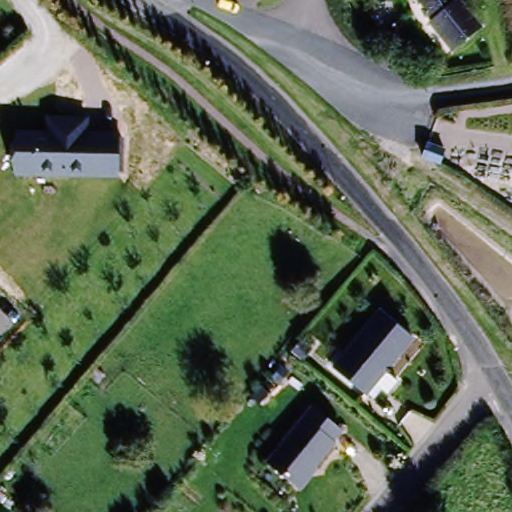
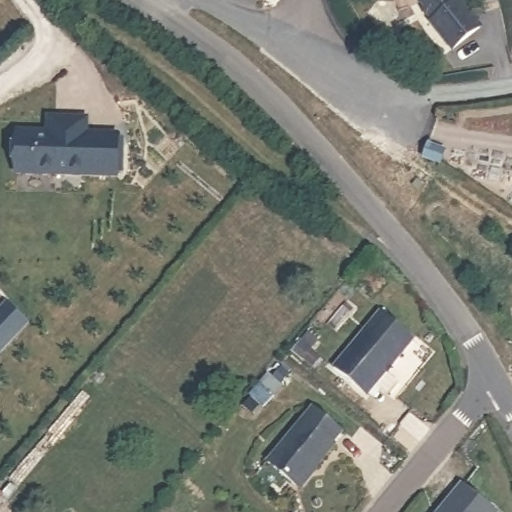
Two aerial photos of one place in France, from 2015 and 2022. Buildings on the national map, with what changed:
unchanged [(457,4),(476,30),(455,52),(435,26),(436,24),(427,7),(425,7),(422,0),(452,0),(455,5),(457,4)]
unchanged [(17,132),(48,132),(48,117),(90,117),(90,129),(121,130),(121,177),(16,177),(17,132)]
unchanged [(414,339),(368,396),(335,369),(380,312),(414,339)]
unchanged [(315,407),(344,431),(334,442),(336,444),(299,489),(268,462),(315,407)]
new [(463,484),(497,512),(441,512),(463,484)]

